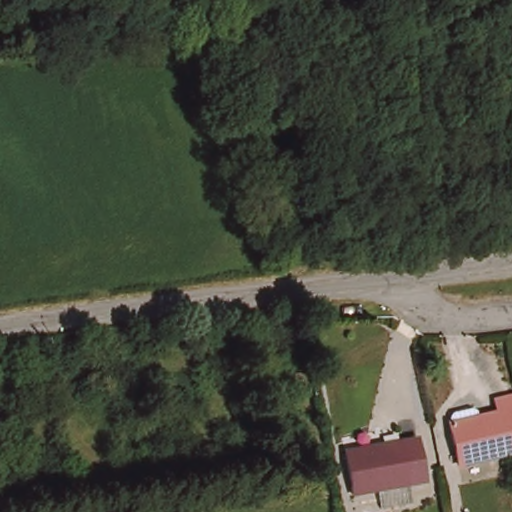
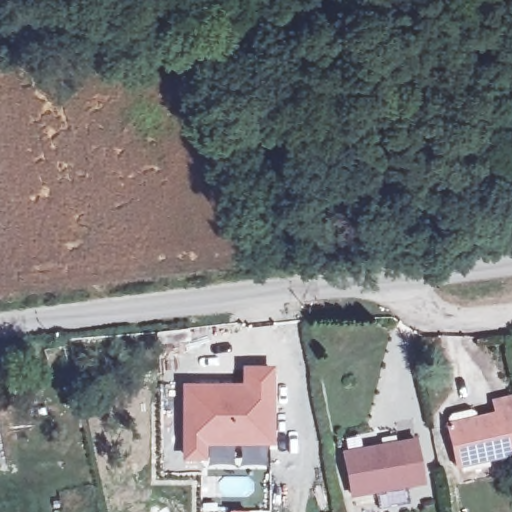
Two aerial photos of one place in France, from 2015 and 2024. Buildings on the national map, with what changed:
new [(182,384),(242,384),(243,366),(275,366),(275,446),(206,446),(207,461),(182,462),(182,384)]
unchanged [(445,426),(498,418),(496,406),(512,403),(512,457),(452,469),(445,426)]
unchanged [(421,487),(346,496),(341,454),(415,445),(421,487)]

